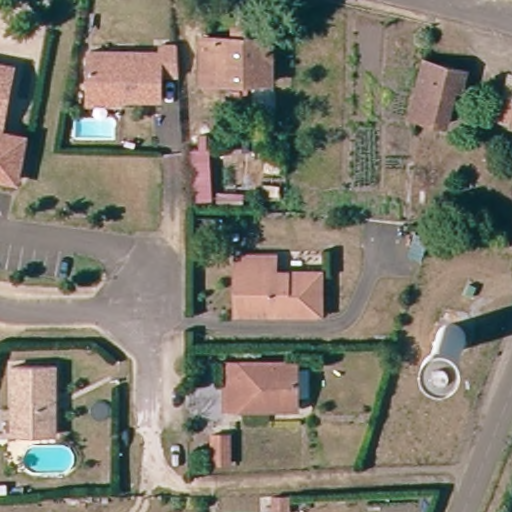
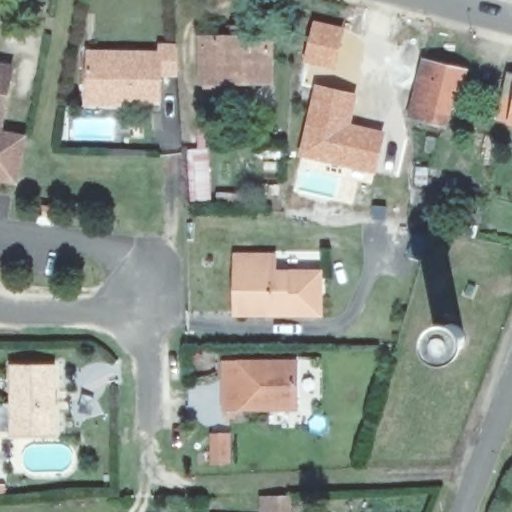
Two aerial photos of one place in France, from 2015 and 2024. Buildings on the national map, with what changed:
unchanged [(280,79),(210,81),(207,34),(239,33),(238,20),(266,19),(267,31),(277,31),(280,79)]
new [(313,19),(346,26),(336,69),(302,61),(313,19)]
unchanged [(96,105),(96,95),(99,54),(170,59),(171,51),(188,52),(189,81),(170,79),(168,105),(128,103),(127,108),(96,105)]
unchanged [(421,121),(408,115),(430,59),(468,69),(467,80),(458,79),(439,170),(411,168),(421,121)]
unchanged [(1,118),(0,124),(0,62),(11,64),(1,118)]
new [(315,81),(357,91),(352,121),(386,130),(375,174),(297,155),(315,81)]
unchanged [(505,115),(512,90),(512,117),(505,115)]
unchanged [(22,141),(15,176),(0,173),(0,130),(23,134),(22,141)]
new [(209,148),(213,199),(191,201),(187,149),(197,149),(209,148)]
unchanged [(238,278),(237,260),(285,260),(284,279),(320,279),(320,318),(291,317),(238,317),(238,278)]
unchanged [(230,377),(232,361),(301,363),(299,408),(245,406),(228,405),(230,377)]
unchanged [(58,367),(55,436),(9,434),(12,364),(58,367)]
demolished [(207,422),(207,449),(189,449),(189,422),(207,422)]
unchanged [(232,434),(232,461),(214,461),(214,434),(232,434)]
demolished [(266,498),(248,499),(247,484),(266,483),(266,498)]
unchanged [(283,511),(266,512),(265,497),(283,496),(283,511)]
demolished [(237,512),(183,512),(183,507),(237,511),(237,512)]

